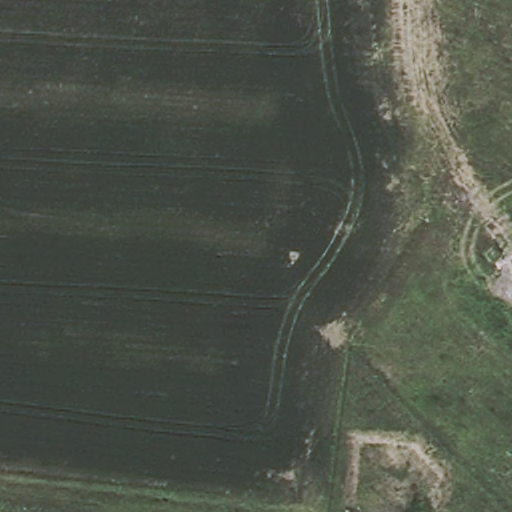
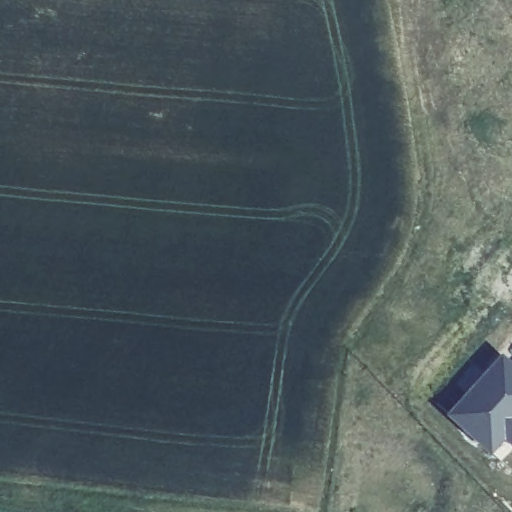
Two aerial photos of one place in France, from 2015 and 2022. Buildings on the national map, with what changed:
new [(512,371),(512,445),(497,462),(447,417),(499,359),(512,371)]

